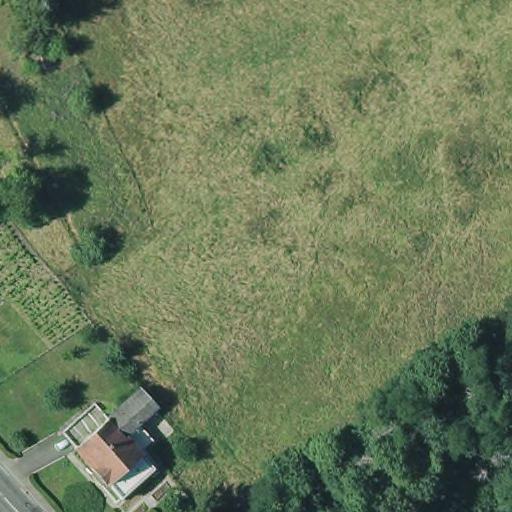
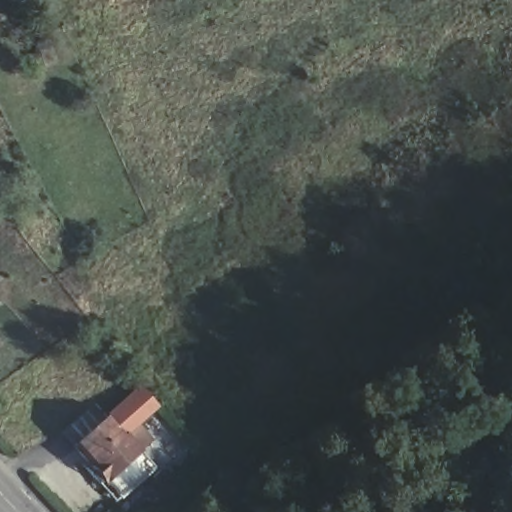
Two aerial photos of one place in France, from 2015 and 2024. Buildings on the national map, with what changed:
unchanged [(68,445),(99,416),(113,432),(149,400),(165,420),(143,437),(156,455),(145,465),(161,483),(157,485),(116,501),(81,461),(68,445)]

